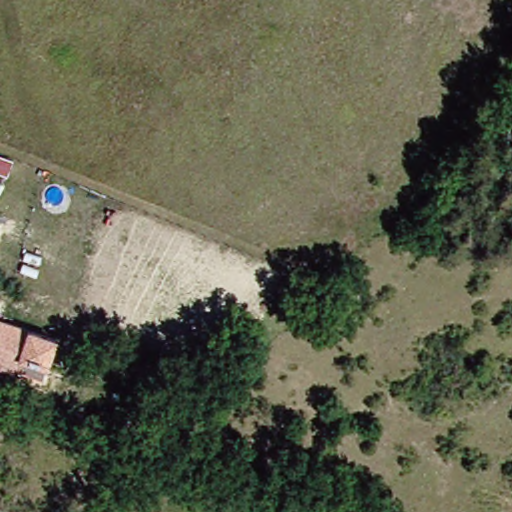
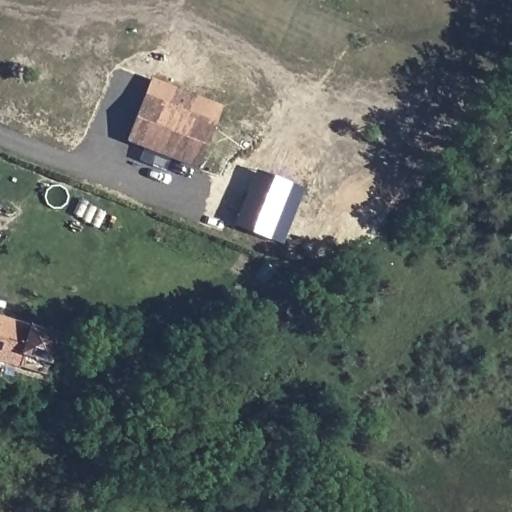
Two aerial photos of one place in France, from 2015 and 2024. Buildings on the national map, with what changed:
new [(200,169),(127,141),(153,78),(224,106),(200,169)]
new [(280,246),(233,225),(255,169),(303,190),(280,246)]
unchanged [(57,334),(47,366),(42,375),(0,362),(0,314),(31,324),(57,334)]

